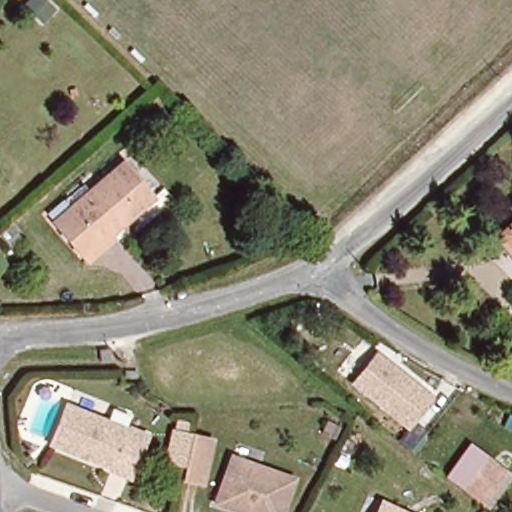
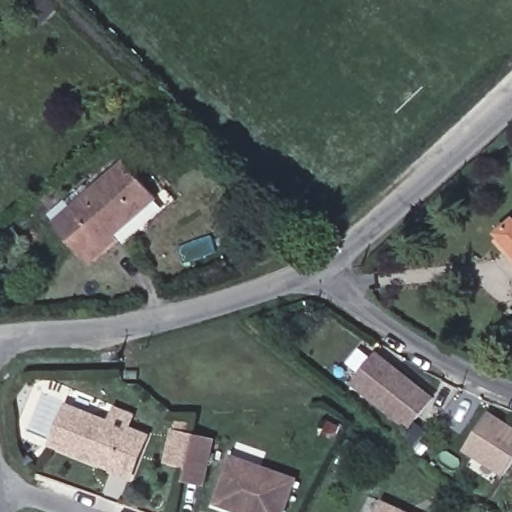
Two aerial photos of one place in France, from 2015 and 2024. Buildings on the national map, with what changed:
unchanged [(30,0),(39,0),(51,12),(40,23),(23,5),(30,0)]
unchanged [(104,239),(106,243),(97,252),(64,213),(117,168),(146,202),(104,239)]
unchanged [(512,226),(512,260),(496,242),(512,226)]
unchanged [(5,227),(14,238),(1,248),(0,247),(0,232),(5,227)]
unchanged [(377,351),(437,397),(411,432),(351,384),(377,351)]
unchanged [(140,437),(125,473),(47,437),(65,402),(140,437)]
new [(512,461),(503,474),(463,450),(488,411),(512,428),(512,461)]
unchanged [(196,428),(215,432),(205,476),(186,472),(196,428)]
unchanged [(276,512),(256,512),(210,493),(225,449),(291,475),(276,512)]
demolished [(507,472),(493,491),(479,479),(491,460),(507,472)]
unchanged [(372,512),(377,501),(400,512),(372,512)]

